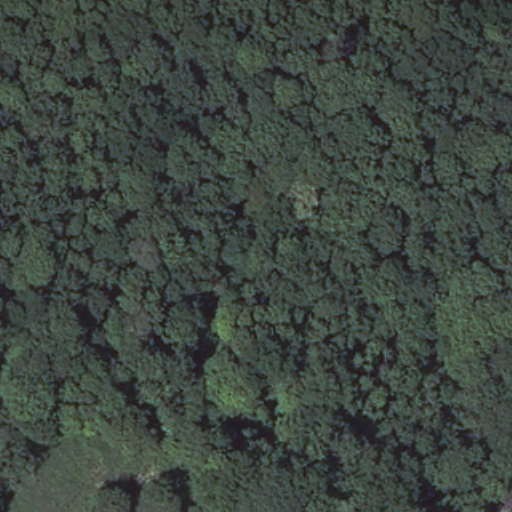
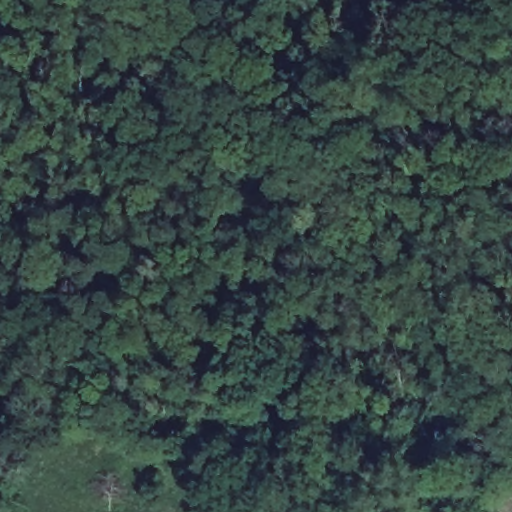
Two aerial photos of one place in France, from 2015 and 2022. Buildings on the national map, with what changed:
unchanged [(495,494),(506,494),(512,503),(512,506),(510,512),(489,512),(487,509),(489,497),(486,492),(491,488),(495,494)]

